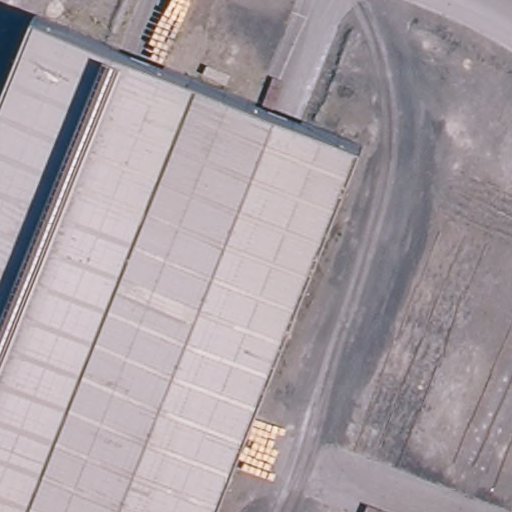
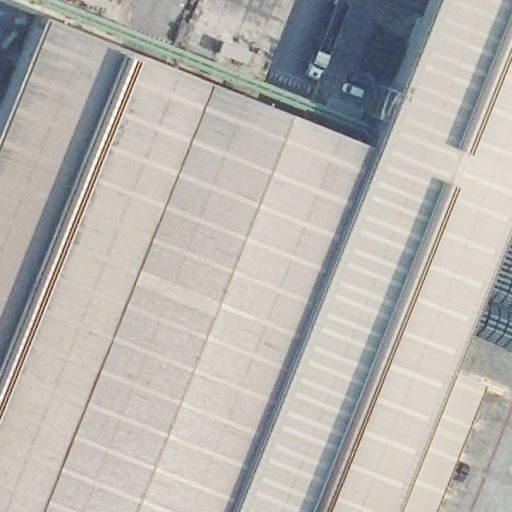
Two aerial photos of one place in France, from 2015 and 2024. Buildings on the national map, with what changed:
new [(478,380),(425,512),(214,512),(361,144),(366,145),(423,0),(512,0),(512,186),(441,365),(478,380)]
unchanged [(39,12),(361,144),(214,512),(0,512),(0,109),(39,12)]

